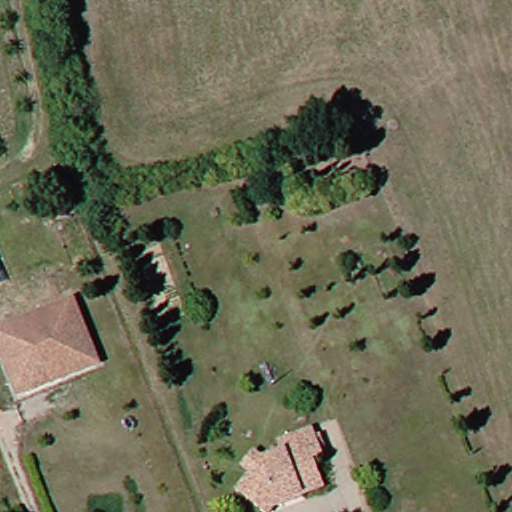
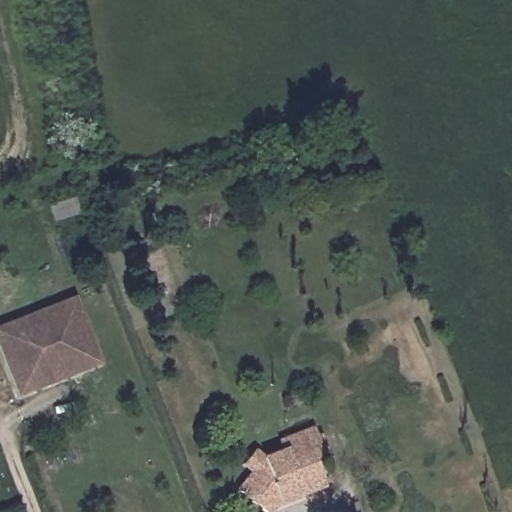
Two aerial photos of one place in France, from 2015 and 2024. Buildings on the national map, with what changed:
unchanged [(0,282),(0,275),(3,281),(0,282)]
unchanged [(0,350),(0,330),(74,300),(95,352),(99,363),(77,373),(30,392),(18,397),(14,385),(0,350)]
unchanged [(288,441),(319,428),(330,455),(318,461),(329,491),(313,499),(308,489),(288,496),(273,512),(270,512),(245,489),(259,473),(245,459),(259,445),(271,458),(292,449),(288,441)]

